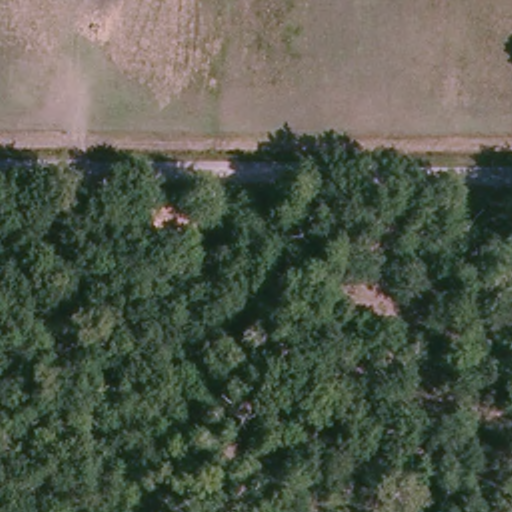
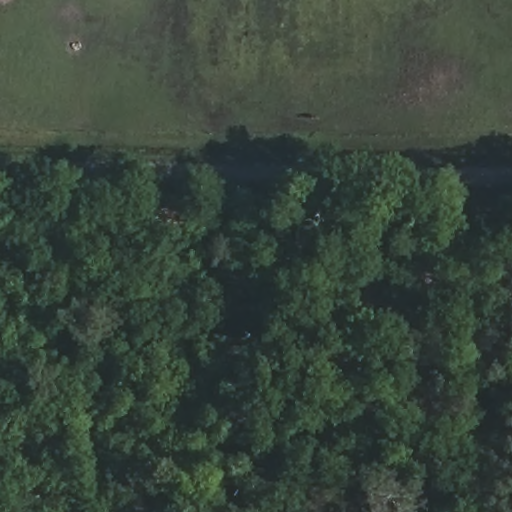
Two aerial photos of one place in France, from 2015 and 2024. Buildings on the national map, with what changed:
unchanged [(199,205),(197,234),(154,234),(155,205),(199,205)]

